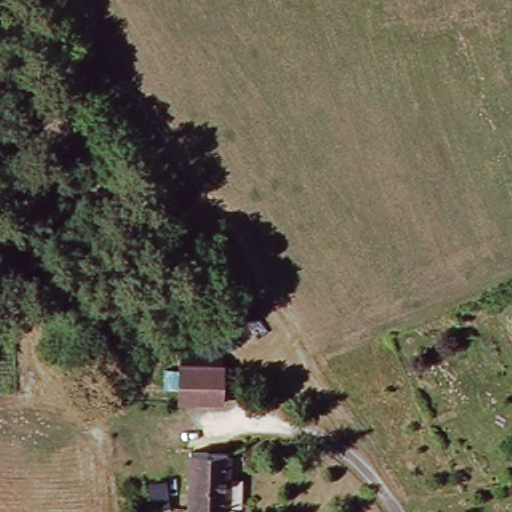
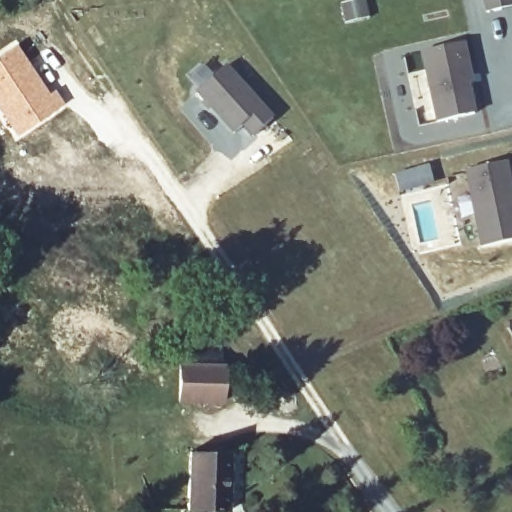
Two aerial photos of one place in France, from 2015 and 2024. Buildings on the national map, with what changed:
new [(486,14),(483,0),(512,0),(512,8),(486,14)]
new [(49,94),(55,90),(65,105),(15,138),(0,116),(0,52),(16,43),(49,94)]
new [(465,43),(474,82),(470,82),(477,113),(421,125),(406,55),(465,43)]
new [(225,68),(273,120),(252,138),(242,126),(234,134),(197,93),(225,68)]
new [(484,248),(468,172),(509,163),(512,179),(512,242),(484,248)]
unchanged [(224,369),(222,406),(183,404),(185,367),(224,369)]
unchanged [(227,512),(188,512),(192,452),(232,457),(227,512)]

